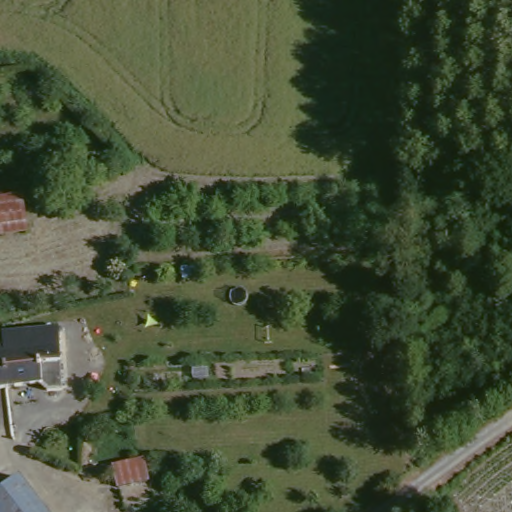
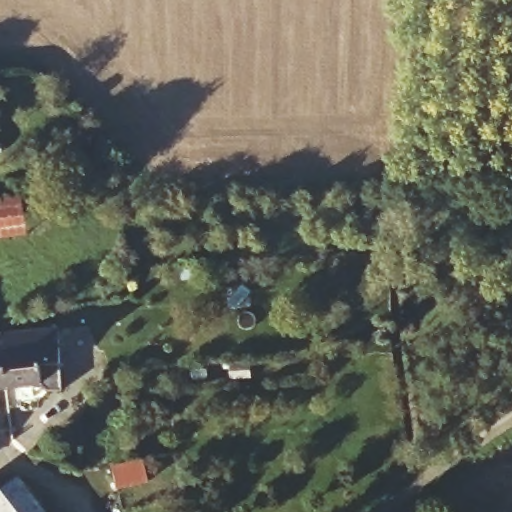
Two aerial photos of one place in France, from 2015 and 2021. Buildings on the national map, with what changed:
unchanged [(0,239),(0,204),(13,201),(22,235),(0,239)]
unchanged [(40,388),(6,394),(0,356),(0,343),(32,336),(31,332),(52,327),(56,326),(60,343),(34,348),(36,356),(52,354),(57,382),(39,385),(40,388)]
unchanged [(0,395),(0,356),(6,394),(0,395)]
unchanged [(123,477),(106,480),(103,457),(102,454),(123,451),(139,449),(143,475),(123,477)]
unchanged [(12,481),(37,512),(0,512),(0,490),(12,481)]

